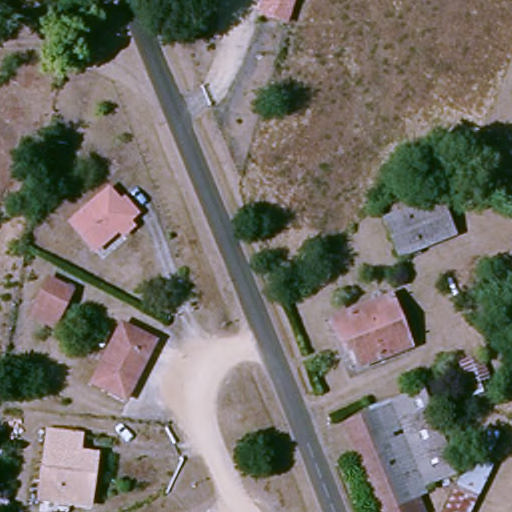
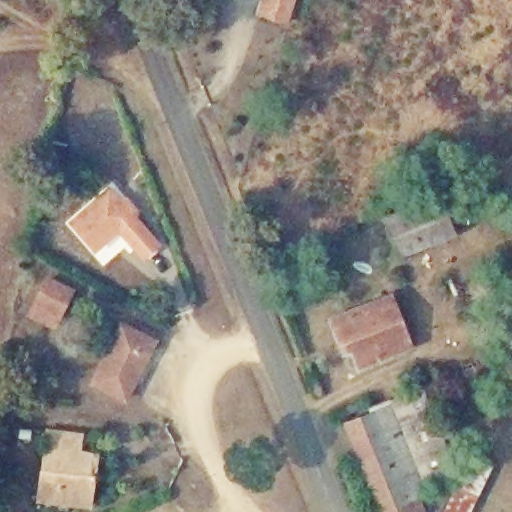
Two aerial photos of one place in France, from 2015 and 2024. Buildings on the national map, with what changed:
unchanged [(288,25),(255,13),(260,0),(296,0),(288,25)]
unchanged [(129,233),(124,227),(99,248),(77,222),(114,188),(128,203),(135,197),(146,209),(134,221),(138,226),(129,233)]
unchanged [(414,253),(399,213),(441,197),(458,236),(414,253)]
unchanged [(36,310),(42,299),(55,275),(77,287),(64,312),(58,322),(36,310)]
unchanged [(401,301),(418,346),(369,364),(359,337),(348,341),(341,323),(401,301)]
unchanged [(129,320),(161,338),(127,398),(95,379),(129,320)]
unchanged [(461,349),(486,341),(501,386),(475,395),(461,349)]
unchanged [(427,510),(422,512),(385,512),(351,418),(393,403),(391,397),(426,384),(457,468),(424,480),(427,490),(421,492),(427,510)]
unchanged [(484,450),(496,422),(508,431),(497,458),(501,461),(480,512),(448,512),(478,447),(484,450)]
unchanged [(32,499),(42,431),(74,437),(72,455),(89,458),(86,476),(82,507),(32,499)]

